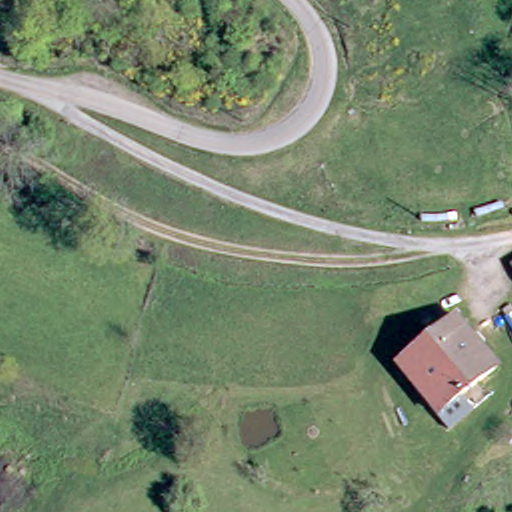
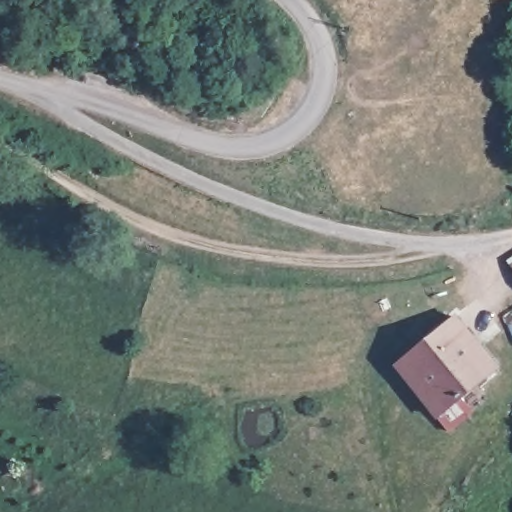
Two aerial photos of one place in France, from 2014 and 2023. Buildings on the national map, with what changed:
unchanged [(512,254),(512,275),(501,262),(512,254)]
unchanged [(440,331),(435,325),(457,307),(499,362),(430,419),(416,402),(391,371),(440,331)]

